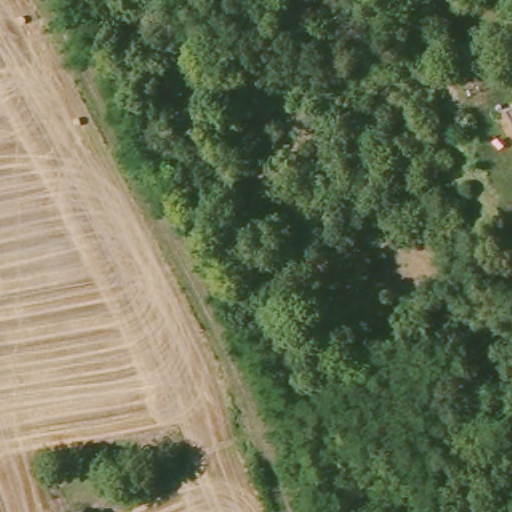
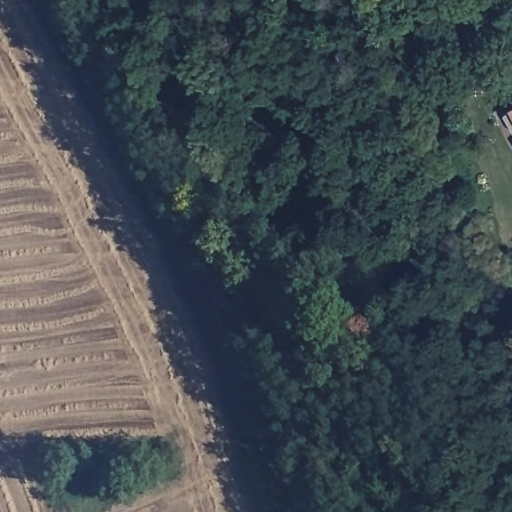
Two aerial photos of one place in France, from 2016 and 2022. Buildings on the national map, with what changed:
unchanged [(512,108),(512,118),(508,110),(512,108)]

